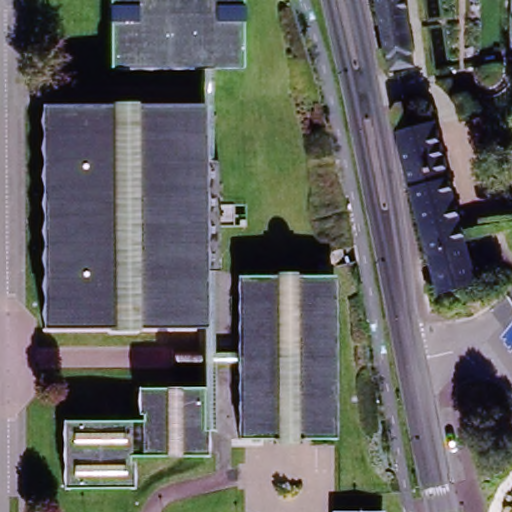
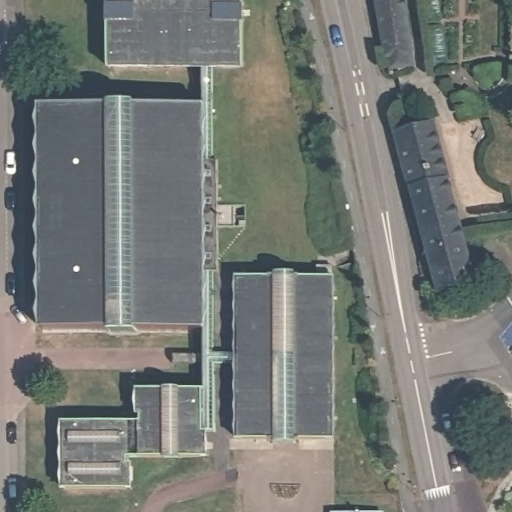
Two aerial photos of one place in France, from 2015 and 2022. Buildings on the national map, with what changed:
unchanged [(238,440),(238,363),(213,363),(213,431),(203,431),(203,457),(128,457),(128,489),(65,489),(64,420),(141,419),(140,387),(203,387),(203,364),(174,364),(174,353),(203,353),(203,329),(44,329),(44,299),(38,280),(44,278),(45,272),(38,252),(44,250),(44,188),(38,169),(44,168),(44,161),(38,142),(44,140),(44,106),(201,106),(201,66),(108,67),(108,0),(241,0),(241,20),(241,65),(213,66),(213,159),(218,159),(218,203),(234,203),(234,226),(218,226),(218,272),(213,271),(213,352),(238,352),(238,276),(316,275),(316,264),(331,264),(331,439),(238,440)]
unchanged [(378,68),(376,56),(366,0),(395,0),(403,52),(404,63),(378,68)]
unchanged [(396,127),(398,126),(434,119),(464,237),(427,248),(413,191),(399,140),(396,127)]
unchanged [(464,237),(475,277),(438,288),(427,248),(464,237)]

